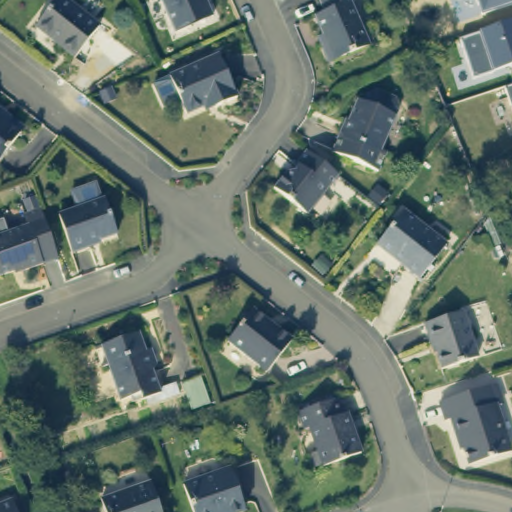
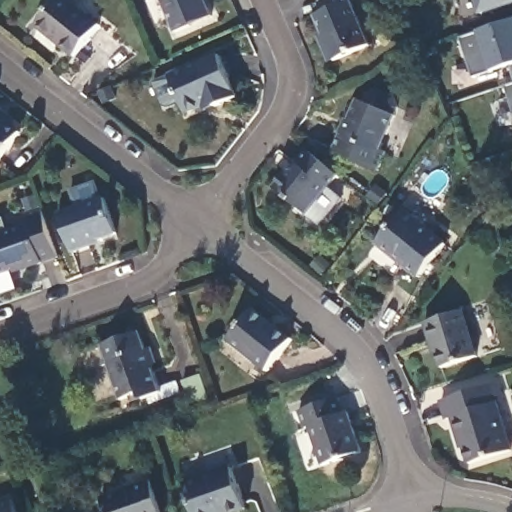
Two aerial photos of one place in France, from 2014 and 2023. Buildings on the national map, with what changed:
unchanged [(77,57),(39,27),(61,0),(69,0),(102,27),(77,57)]
unchanged [(195,22),(195,28),(177,35),(162,0),(156,2),(156,0),(205,0),(211,15),(195,22)]
unchanged [(370,47),(335,62),(316,17),(327,12),(321,0),(353,0),(351,0),(370,47)]
unchanged [(481,15),(476,0),(512,0),(512,5),(481,15)]
unchanged [(492,71),(472,77),(461,38),(480,31),(512,21),(512,64),(492,71)]
unchanged [(221,57),(240,96),(216,106),(214,101),(185,111),(174,78),(221,57)]
unchanged [(506,86),(512,85),(512,104),(506,86)]
unchanged [(325,154),(332,136),(335,137),(350,103),(356,106),(363,92),(370,91),(388,100),(393,107),(373,156),(377,158),(371,175),(325,154)]
unchanged [(0,100),(9,106),(6,109),(27,125),(0,159),(0,100)]
unchanged [(307,210),(271,183),(283,167),(292,166),(308,149),(335,170),(307,210)]
unchanged [(104,199),(115,232),(87,242),(89,246),(72,253),(60,215),(104,199)]
unchanged [(30,261),(2,271),(0,266),(0,217),(8,214),(14,229),(32,222),(29,212),(45,206),(61,253),(32,264),(30,261)]
unchanged [(450,241),(423,275),(383,242),(410,208),(450,241)]
unchanged [(294,337),(269,370),(233,342),(257,309),(294,337)]
unchanged [(483,361),(450,372),(441,344),(437,344),(432,328),(469,318),(483,361)]
unchanged [(141,333),(163,395),(145,401),(142,396),(124,402),(112,367),(105,369),(97,349),(141,333)]
unchanged [(207,407),(190,413),(180,388),(197,381),(207,407)]
unchanged [(499,385),(506,404),(498,408),(511,452),(473,465),(457,420),(450,422),(443,402),(499,385)]
unchanged [(339,400),(343,414),(348,413),(362,450),(324,462),(312,426),(308,427),(302,412),(339,400)]
unchanged [(228,469),(242,510),(238,512),(192,512),(184,486),(228,469)]
unchanged [(152,479),(165,512),(109,512),(104,497),(152,479)]
unchanged [(21,512),(0,512),(0,502),(15,496),(21,512)]

